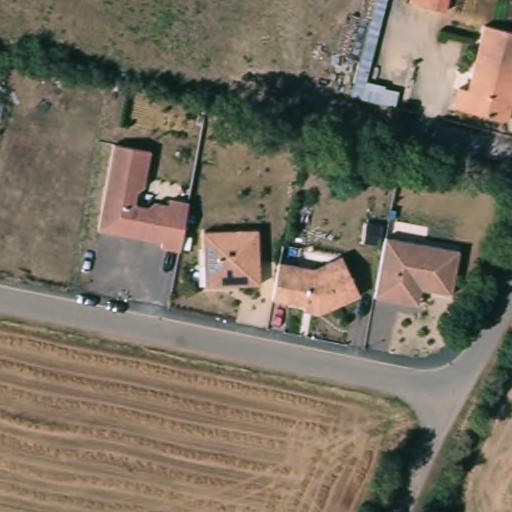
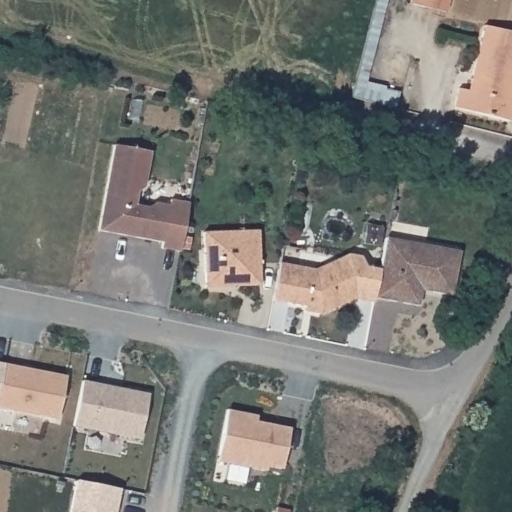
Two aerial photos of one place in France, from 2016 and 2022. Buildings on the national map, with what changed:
unchanged [(440,15),(418,8),(403,3),(404,0),(444,0),(440,15)]
unchanged [(512,31),(512,115),(509,124),(455,108),(462,87),(471,91),(490,24),(512,31)]
new [(367,36),(377,38),(362,100),(351,97),(367,36)]
unchanged [(157,194),(170,197),(172,192),(190,196),(179,244),(161,240),(163,234),(99,220),(118,136),(154,143),(146,178),(139,183),(136,196),(149,199),(157,194)]
unchanged [(258,229),(261,284),(206,289),(202,230),(258,229)]
unchanged [(458,251),(452,296),(421,291),(420,303),(419,304),(377,298),(386,238),(458,251)]
new [(358,294),(341,255),(351,252),(362,256),(366,265),(381,268),(377,298),(358,294)]
unchanged [(303,303),(272,296),(279,260),(313,267),(341,255),(358,294),(318,311),(302,308),(303,303)]
new [(0,408),(0,362),(64,374),(56,417),(0,408)]
new [(140,437),(74,425),(83,380),(149,393),(140,437)]
new [(227,407),(258,414),(257,419),(288,426),(281,467),(268,463),(267,470),(217,461),(227,407)]

